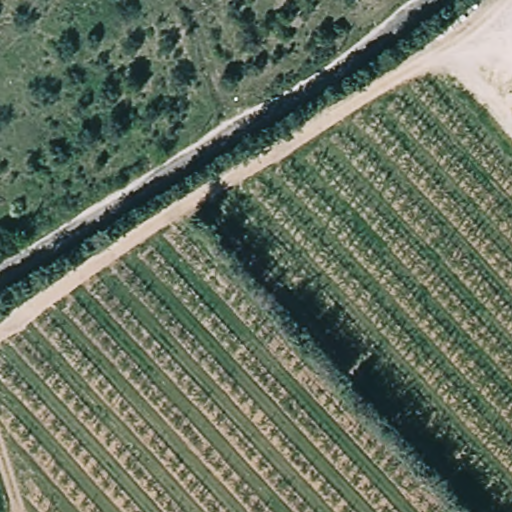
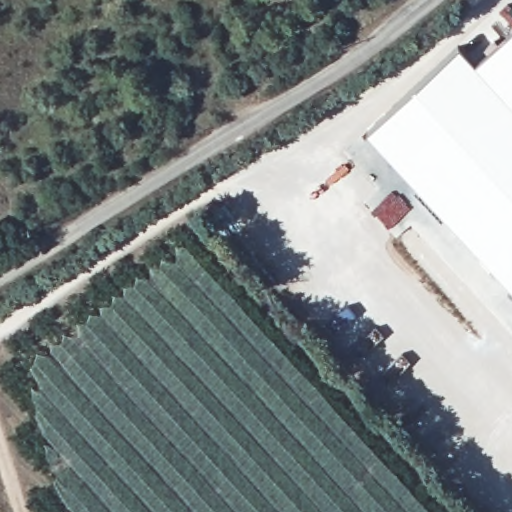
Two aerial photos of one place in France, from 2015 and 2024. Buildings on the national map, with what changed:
new [(458,46),(474,66),(512,29),(512,101),(511,102),(512,104),(512,290),(366,132),(458,46)]
new [(512,101),(512,104),(511,102),(512,101)]

